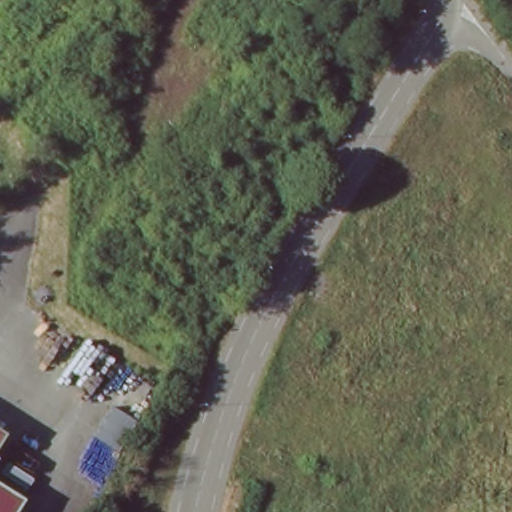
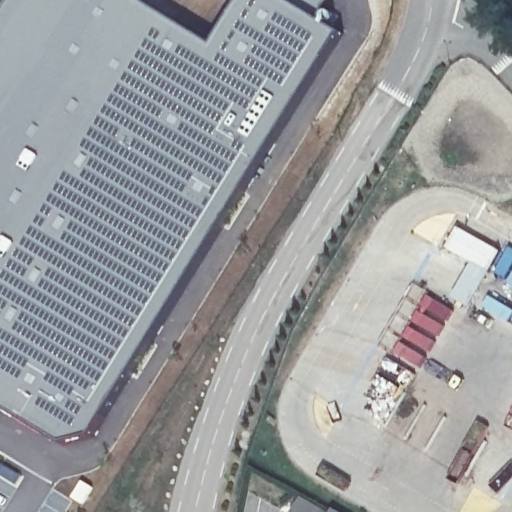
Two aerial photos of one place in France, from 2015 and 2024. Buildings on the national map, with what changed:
new [(212,43),(239,0),(289,0),(316,17),(337,31),(276,133),(188,276),(148,346),(91,434),(61,442),(0,409),(0,20),(12,0),(142,0),(212,43)]
new [(316,17),(289,0),(326,0),(316,17)]
demolished [(0,444),(0,432),(5,435),(0,444)]
demolished [(10,512),(0,512),(0,488),(18,500),(10,512)]

